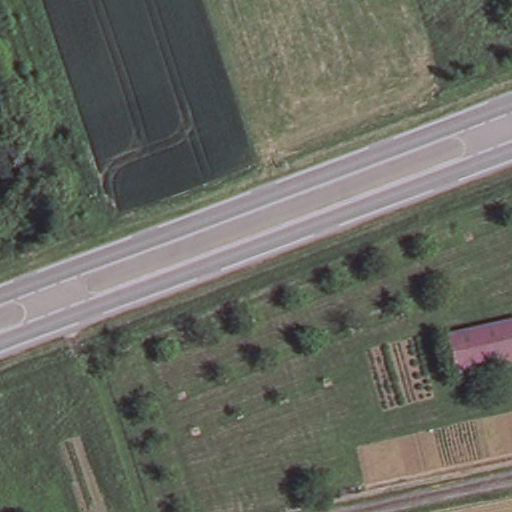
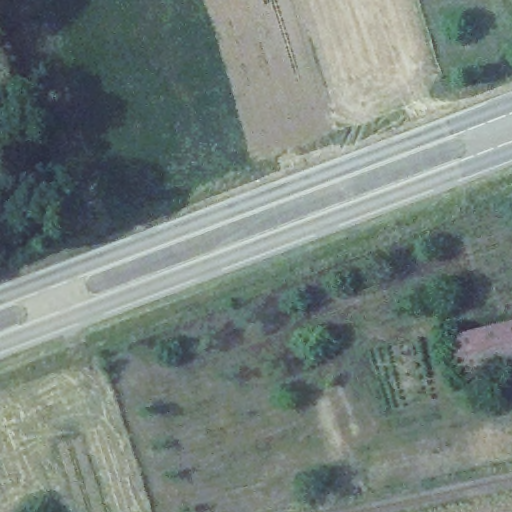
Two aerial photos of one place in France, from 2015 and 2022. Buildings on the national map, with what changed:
unchanged [(449,337),(512,323),(512,367),(457,378),(449,337)]

